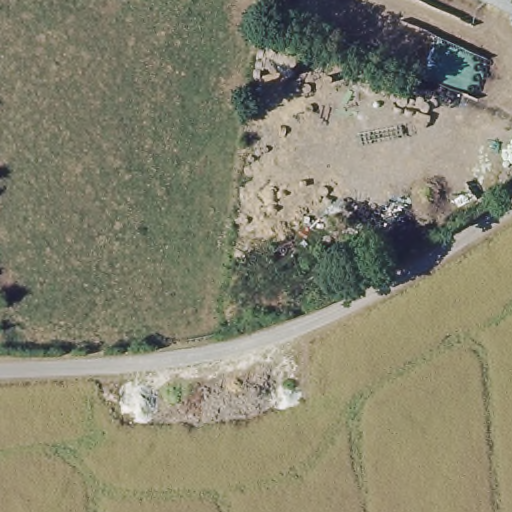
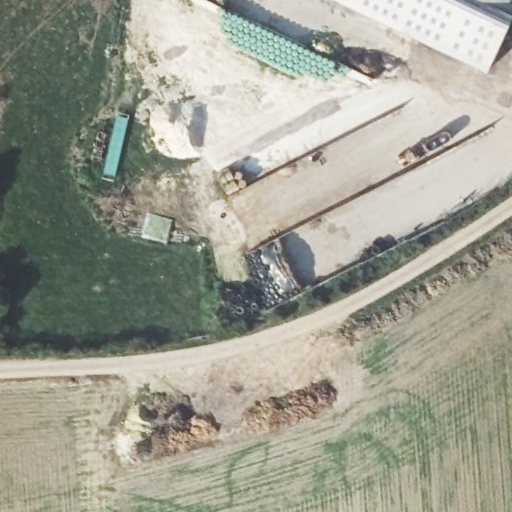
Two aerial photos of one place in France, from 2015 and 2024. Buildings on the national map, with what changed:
new [(495,0),(512,10),(512,28),(490,71),(340,0),(494,0),(495,0)]
unchanged [(495,0),(494,0),(512,0),(512,10),(495,0)]

